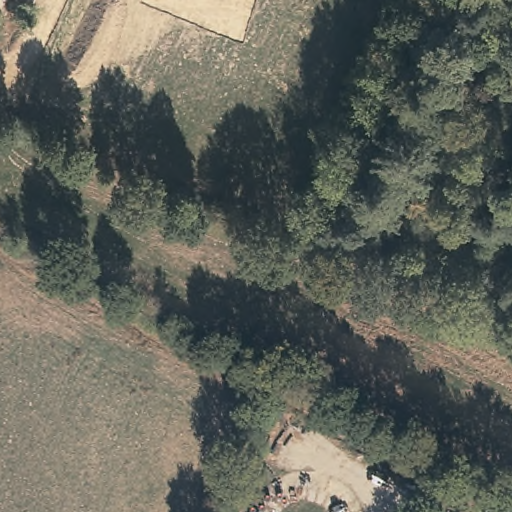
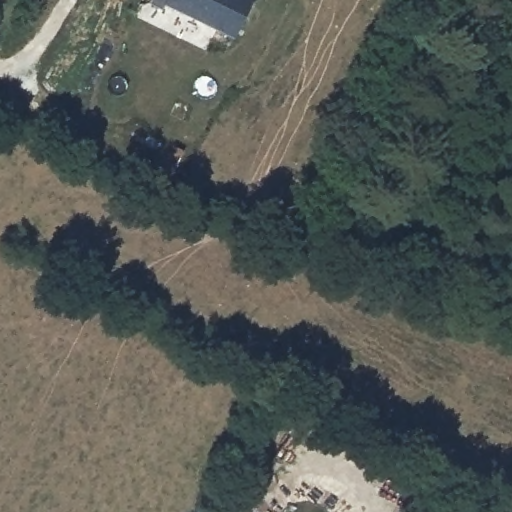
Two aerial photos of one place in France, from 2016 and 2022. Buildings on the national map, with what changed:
new [(230,36),(161,3),(157,10),(144,3),(145,0),(247,0),(230,36)]

